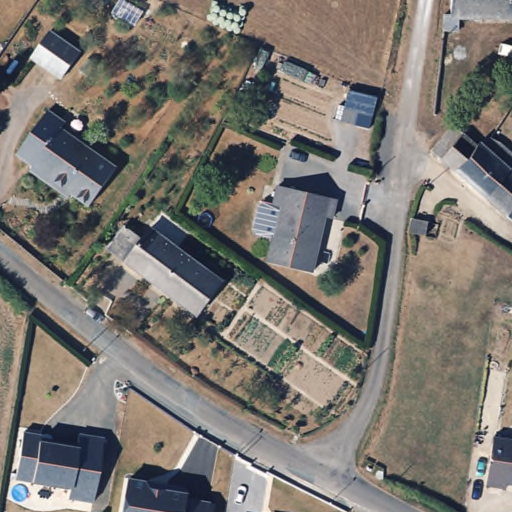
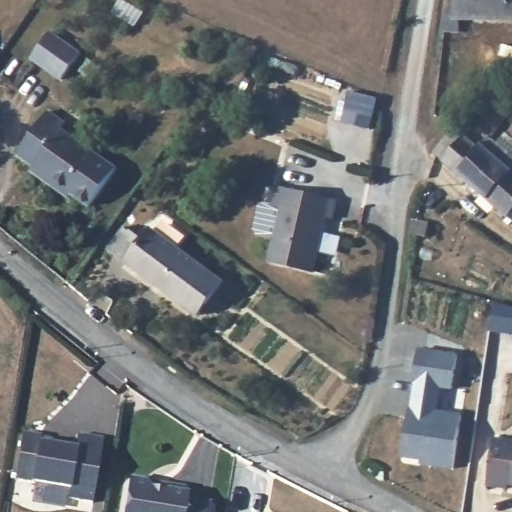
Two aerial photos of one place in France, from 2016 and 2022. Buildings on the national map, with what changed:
unchanged [(512,24),(467,20),(465,34),(445,32),(446,19),(452,19),(455,0),(512,0),(512,24)]
unchanged [(81,52),(63,78),(33,57),(51,31),(81,52)]
unchanged [(119,167),(92,205),(23,154),(54,111),(69,122),(66,128),(119,167)]
unchanged [(453,132),(455,129),(480,148),(485,142),(500,146),(512,155),(512,221),(438,157),(453,132)]
unchanged [(338,204),(333,223),(326,222),(312,276),(266,263),(279,212),(272,211),(277,191),(338,204)]
unchanged [(430,212),(425,236),(411,233),(408,232),(414,209),(427,212),(430,212)]
unchanged [(228,286),(202,320),(115,255),(131,232),(152,246),(159,236),(228,286)]
new [(416,347),(456,352),(451,389),(440,388),(436,409),(460,412),(452,468),(418,464),(418,459),(401,457),(416,347)]
unchanged [(90,501),(66,497),(68,487),(13,478),(21,431),(39,434),(38,437),(75,443),(77,433),(101,437),(90,501)]
unchanged [(512,486),(509,486),(508,491),(486,488),(492,440),(512,442),(512,486)]
unchanged [(125,512),(130,477),(148,479),(148,488),(165,490),(166,483),(188,489),(187,500),(209,502),(208,512),(125,512)]

